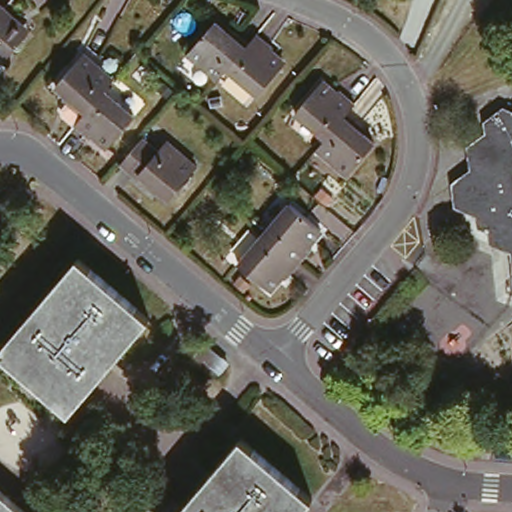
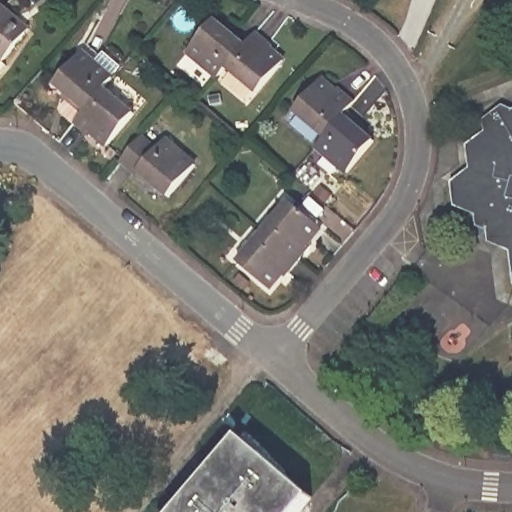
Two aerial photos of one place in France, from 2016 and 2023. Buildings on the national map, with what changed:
unchanged [(2,84),(0,82),(0,9),(14,20),(33,37),(29,42),(9,65),(15,70),(2,84)]
unchanged [(189,64),(215,32),(229,45),(232,40),(249,54),(227,79),(218,90),(189,64)]
unchanged [(273,57),(270,61),(284,74),(257,105),(227,79),(249,54),(257,44),(273,57)]
unchanged [(85,121),(64,104),(67,100),(57,92),(86,60),(115,85),(107,95),(85,121)]
unchanged [(344,114),(321,141),(292,116),(320,84),(334,95),(338,90),(352,104),(344,114)]
unchanged [(85,121),(107,95),(138,121),(112,153),(95,138),(90,144),(76,131),(85,121)]
unchanged [(512,249),(479,234),(477,223),(456,213),(452,185),(471,173),(467,150),(487,134),(485,121),(505,106),(512,109),(512,254),(512,249)]
unchanged [(321,141),(344,114),(360,126),(357,130),(372,144),(345,176),(314,150),(321,141)]
unchanged [(146,141),(162,154),(170,144),(201,169),(170,204),(155,190),(151,195),(122,171),(146,141)]
unchanged [(267,237),(292,207),(325,234),(312,249),(316,252),(304,267),(267,237)]
unchanged [(292,282),(287,278),(274,295),(242,268),(267,237),(304,267),(292,282)]
demolished [(152,323),(72,417),(0,358),(0,357),(81,264),(152,323)]
unchanged [(319,504),(312,512),(184,512),(243,441),(319,504)]
demolished [(0,512),(0,497),(19,512),(0,512)]

